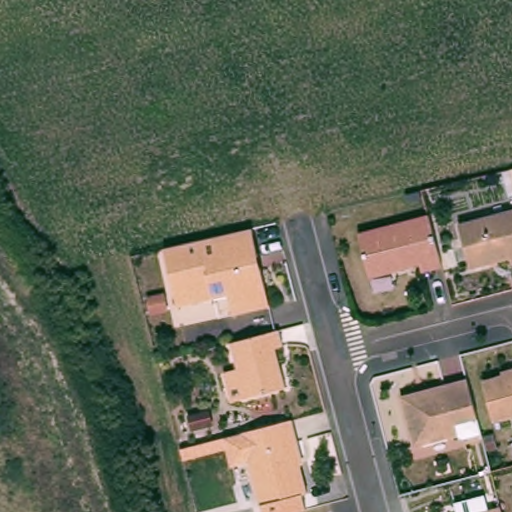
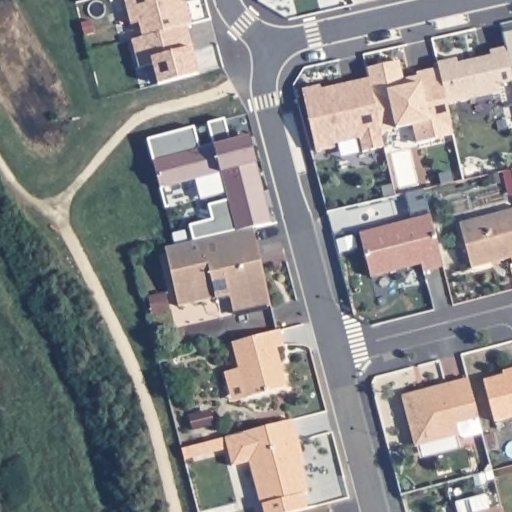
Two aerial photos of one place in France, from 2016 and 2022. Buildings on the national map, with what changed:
new [(185,3),(192,26),(187,27),(143,39),(139,24),(131,26),(124,0),(179,0),(180,4),(185,3)]
new [(197,76),(158,87),(152,66),(139,70),(131,42),(143,39),(187,27),(192,45),(199,75),(197,76)]
new [(512,32),(512,78),(505,48),(502,34),(512,32)]
new [(456,60),(457,65),(491,57),(489,52),(505,48),(512,78),(512,82),(498,85),(500,94),(447,106),(439,69),(437,64),(456,60)]
new [(437,140),(417,145),(413,126),(381,134),(369,80),(367,70),(398,63),(403,81),(418,78),(417,74),(439,69),(447,106),(452,129),(454,136),(437,140)]
new [(319,87),(320,91),(369,80),(381,134),(384,149),(363,154),(359,140),(334,146),(334,150),(316,154),(302,91),(319,87)]
new [(220,172),(159,187),(147,138),(194,125),(199,147),(213,144),(207,122),(224,118),(230,140),(249,135),(254,162),(270,221),(254,225),(193,239),(189,225),(212,218),(209,204),(228,200),(220,172)]
unchanged [(512,254),(472,265),(460,220),(512,206),(512,256),(512,254)]
unchanged [(449,262),(429,267),(426,259),(374,272),(363,230),(436,211),(449,262)]
unchanged [(271,303),(234,311),(230,292),(179,304),(165,245),(254,225),(260,253),(252,257),(253,262),(263,265),(271,303)]
unchanged [(225,368),(239,364),(233,338),(259,331),(280,326),(284,341),(277,343),(282,364),(287,383),(247,393),(233,397),(225,368)]
unchanged [(483,381),(512,373),(512,417),(494,422),(483,381)]
unchanged [(487,432),(468,437),(464,434),(419,445),(407,397),(473,379),(487,432)]
unchanged [(303,437),(299,438),(313,489),(309,490),(313,504),(304,506),(289,510),(283,512),(270,512),(268,501),(266,501),(254,457),(237,461),(232,443),(190,454),(188,444),(229,433),(247,429),(298,415),(303,437)]
unchanged [(507,507),(508,512),(489,512),(507,507)]

